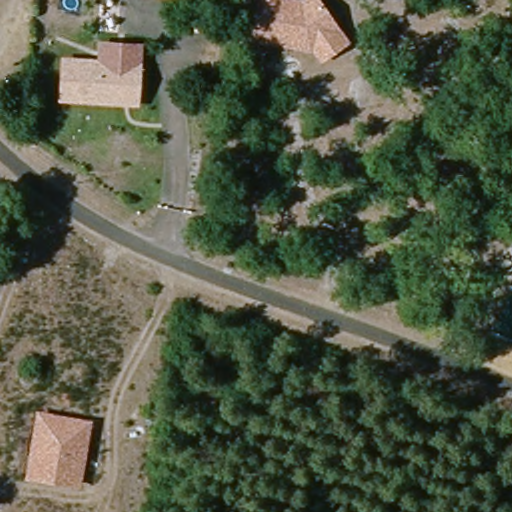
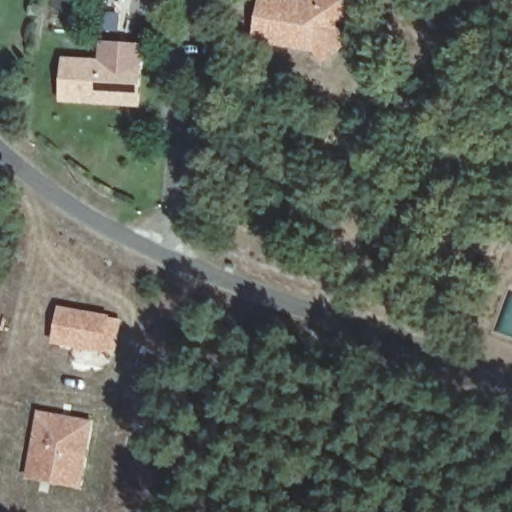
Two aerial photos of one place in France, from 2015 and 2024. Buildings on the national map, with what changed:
unchanged [(340,27),(352,43),(321,65),(313,55),(251,42),(258,0),(320,0),(340,27)]
unchanged [(133,101),(58,100),(58,61),(133,62),(133,101)]
new [(114,350),(103,348),(56,339),(62,307),(109,316),(119,319),(114,350)]
unchanged [(94,421),(81,488),(25,480),(36,410),(94,421)]

